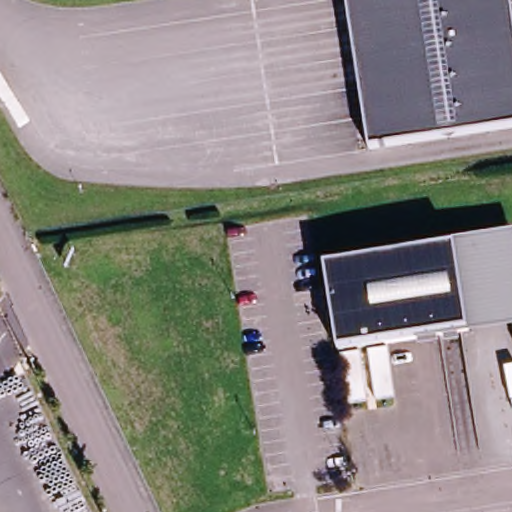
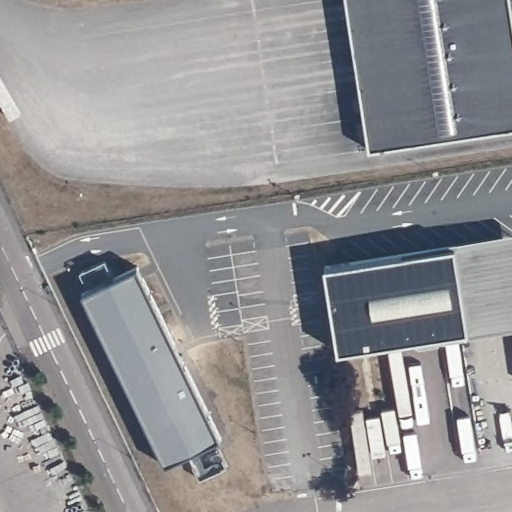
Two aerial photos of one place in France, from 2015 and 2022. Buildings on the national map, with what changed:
unchanged [(512,132),(371,151),(349,0),(512,0),(512,132)]
unchanged [(512,236),(512,324),(470,330),(457,244),(512,236)]
unchanged [(325,262),(457,244),(470,330),(338,348),(325,262)]
new [(138,266),(221,439),(166,464),(83,293),(138,266)]

